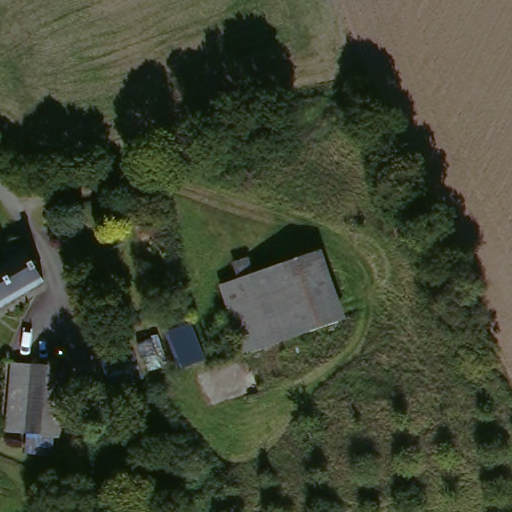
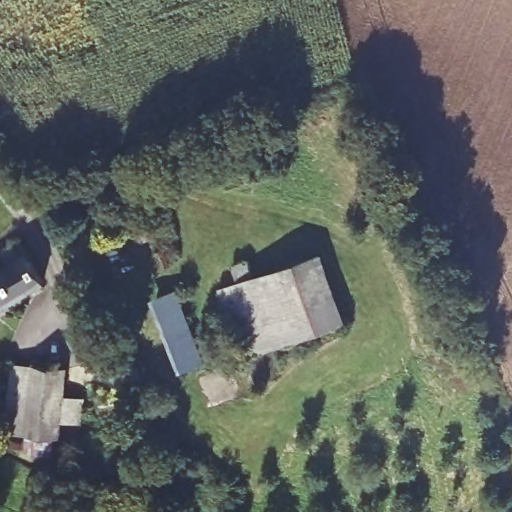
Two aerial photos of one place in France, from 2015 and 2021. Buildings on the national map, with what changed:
unchanged [(0,316),(0,264),(5,261),(0,250),(0,247),(18,236),(25,249),(50,286),(0,316)]
unchanged [(320,248),(347,315),(285,338),(260,272),(264,271),(320,248)]
unchanged [(260,272),(285,338),(251,351),(226,284),(248,276),(242,257),(257,252),(264,271),(260,272)]
new [(152,299),(179,289),(205,361),(180,371),(152,299)]
unchanged [(27,455),(28,435),(4,433),(12,362),(68,365),(61,432),(58,458),(27,455)]

